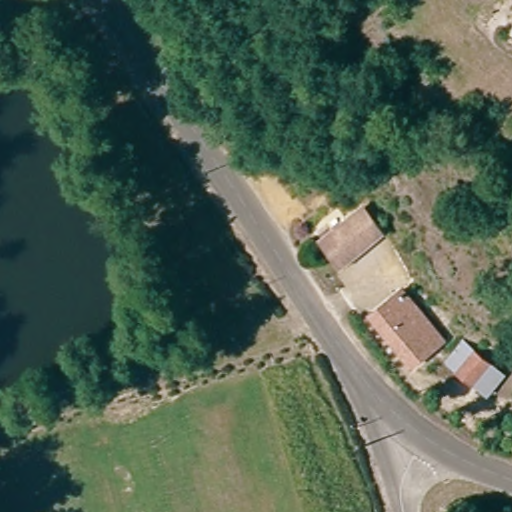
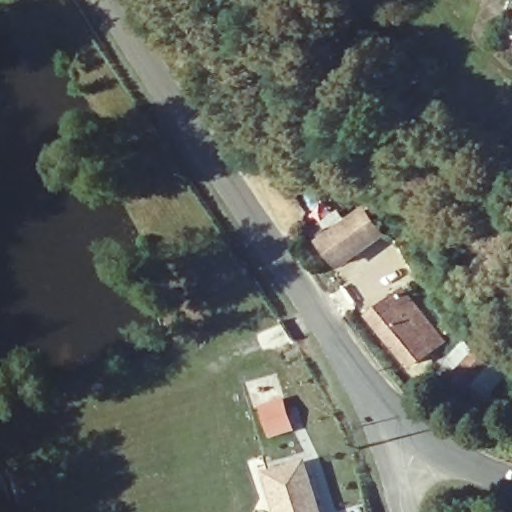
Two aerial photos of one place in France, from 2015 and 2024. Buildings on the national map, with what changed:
unchanged [(345,259),(329,235),(367,210),(383,234),(345,259)]
unchanged [(406,289),(440,342),(408,362),(374,309),(406,289)]
unchanged [(507,378),(491,397),(450,363),(466,344),(507,378)]
new [(295,431),(270,439),(260,405),(285,398),(295,431)]
new [(277,512),(265,473),(307,459),(323,512),(277,512)]

